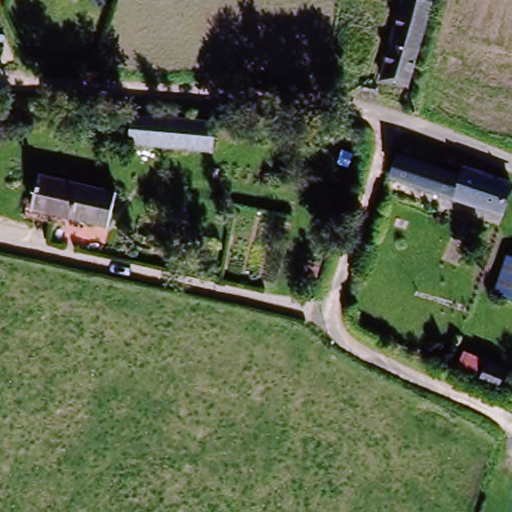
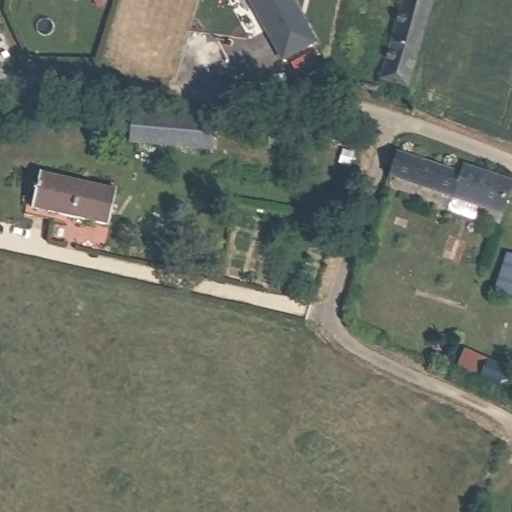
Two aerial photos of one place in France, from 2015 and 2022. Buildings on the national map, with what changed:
new [(290,0),(316,45),(284,62),(251,2),(254,0),(290,0)]
unchanged [(414,0),(434,6),(408,94),(381,87),(406,0),(414,0)]
unchanged [(128,150),(131,118),(228,125),(226,157),(128,150)]
unchanged [(459,180),(463,171),(510,187),(501,217),(388,179),(395,159),(459,180)]
unchanged [(29,223),(40,174),(118,191),(110,227),(63,219),(60,230),(29,223)]
unchanged [(506,254),(512,256),(512,297),(495,291),(506,254)]
unchanged [(481,362),(504,371),(497,388),(474,380),(481,362)]

